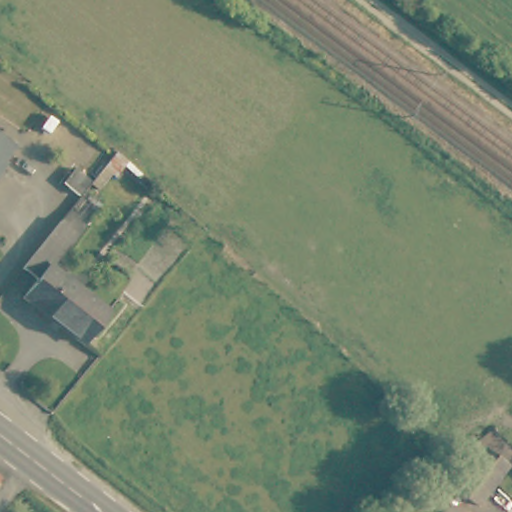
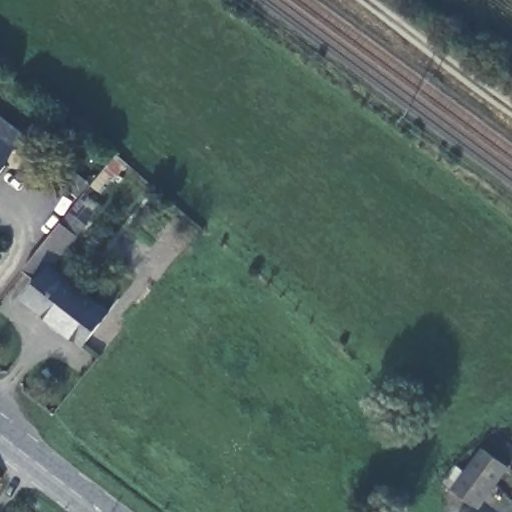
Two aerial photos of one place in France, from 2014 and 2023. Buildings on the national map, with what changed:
unchanged [(13,152),(4,165),(6,168),(0,176),(0,142),(13,152)]
unchanged [(84,224),(50,268),(107,313),(81,347),(22,299),(35,282),(22,269),(68,211),(84,224)]
unchanged [(453,489),(469,466),(482,448),(508,467),(494,485),(477,508),(453,489)]
unchanged [(0,481),(0,478),(2,479),(0,481)]

